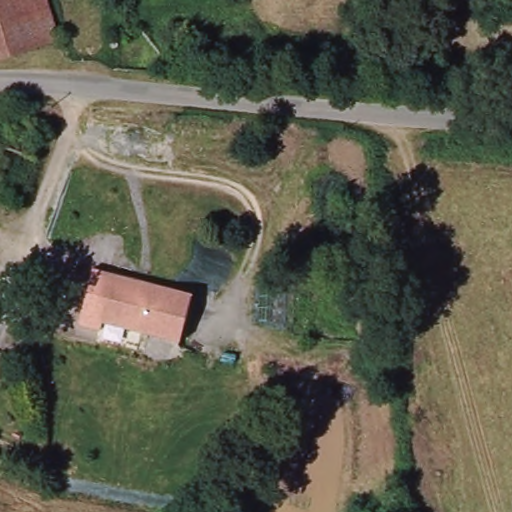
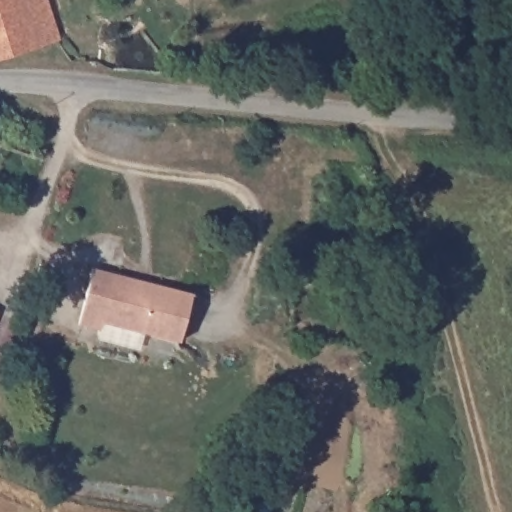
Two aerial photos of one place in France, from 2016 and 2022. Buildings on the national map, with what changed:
unchanged [(47,0),(60,38),(0,57),(0,0),(47,0)]
unchanged [(194,291),(181,343),(105,323),(103,331),(79,324),(93,264),(194,291)]

